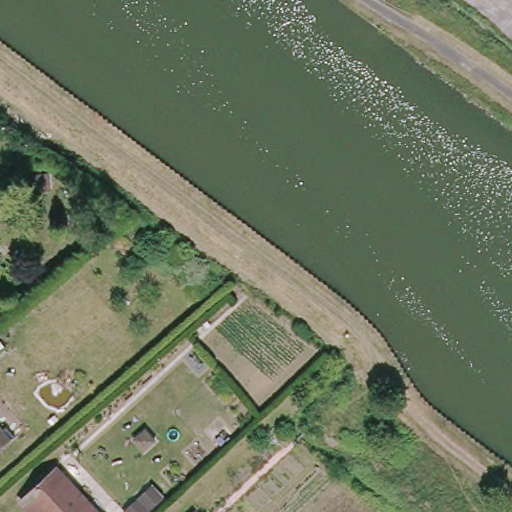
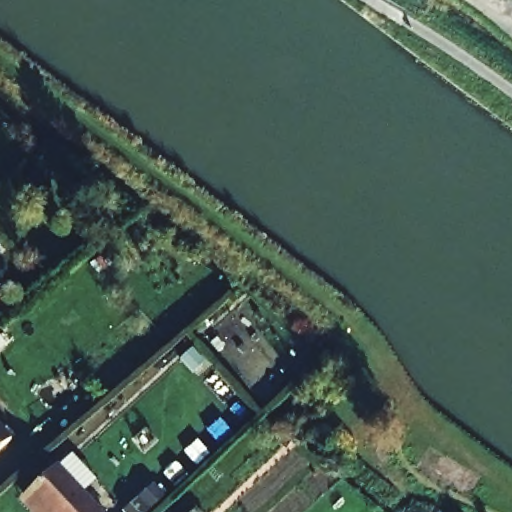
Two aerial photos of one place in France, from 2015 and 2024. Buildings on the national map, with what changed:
unchanged [(0,299),(0,292),(4,296),(0,299)]
unchanged [(5,430),(13,441),(0,452),(0,432),(1,433),(5,430)]
unchanged [(61,483),(82,505),(85,501),(95,512),(27,512),(61,483)]

